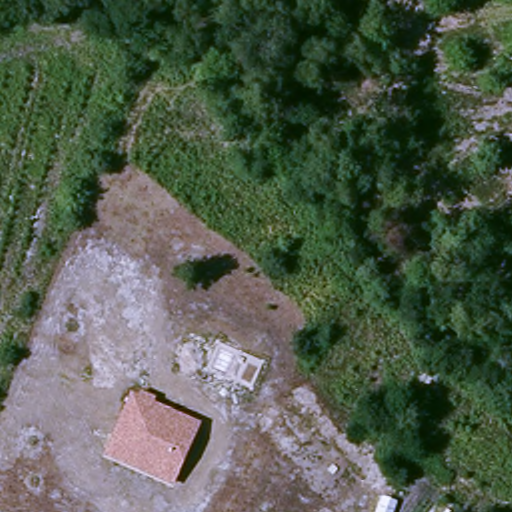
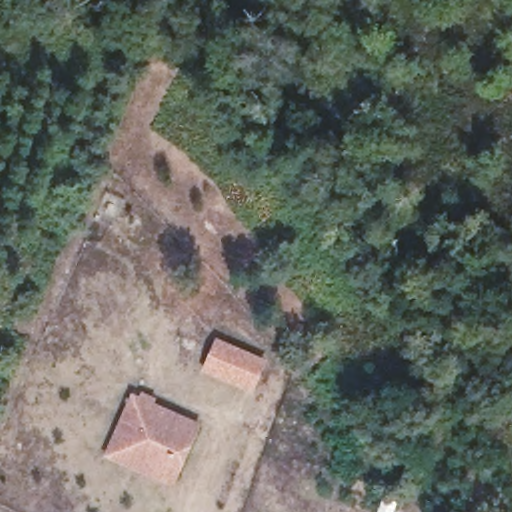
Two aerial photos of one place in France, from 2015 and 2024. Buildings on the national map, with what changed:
new [(255,392),(202,371),(215,339),(267,360),(255,392)]
unchanged [(139,395),(140,391),(156,398),(155,402),(201,424),(173,486),(105,456),(130,393),(139,395)]

